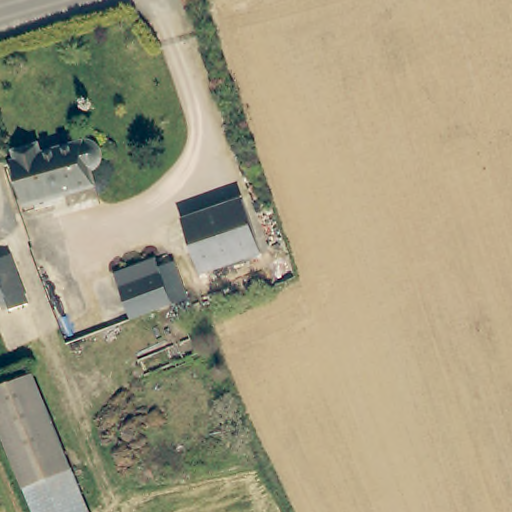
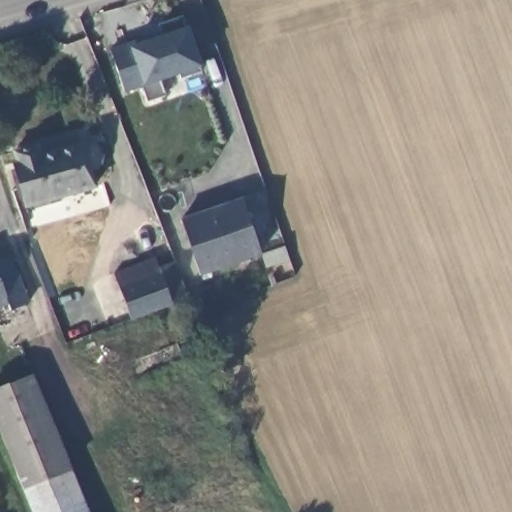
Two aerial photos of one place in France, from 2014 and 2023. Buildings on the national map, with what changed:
new [(128,44),(130,47),(165,34),(160,24),(181,17),(185,27),(200,66),(198,72),(181,77),(179,74),(160,80),(165,95),(146,102),(144,87),(126,94),(110,50),(128,44)]
unchanged [(16,162),(14,152),(36,145),(40,154),(83,142),(84,145),(89,146),(92,146),(95,147),(98,150),(99,152),(101,157),(100,161),(98,165),(96,168),(91,170),(95,186),(25,206),(13,162),(16,162)]
unchanged [(241,199),(260,254),(199,275),(180,220),(241,199)]
unchanged [(27,305),(9,312),(6,303),(0,305),(0,259),(8,256),(27,305)]
unchanged [(148,267),(163,262),(177,298),(161,305),(119,320),(108,288),(103,275),(144,258),(148,267)]
unchanged [(85,512),(32,512),(0,435),(0,389),(31,377),(85,512)]

